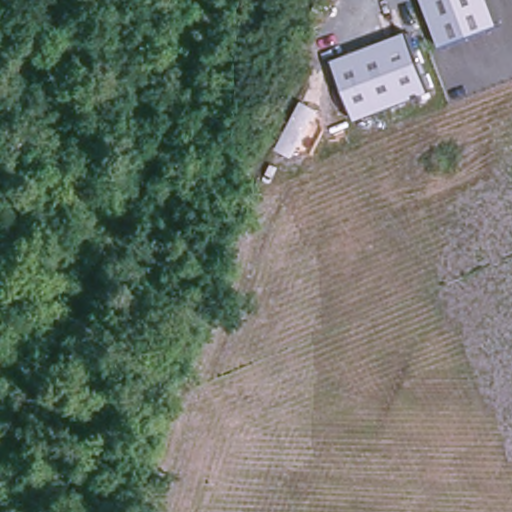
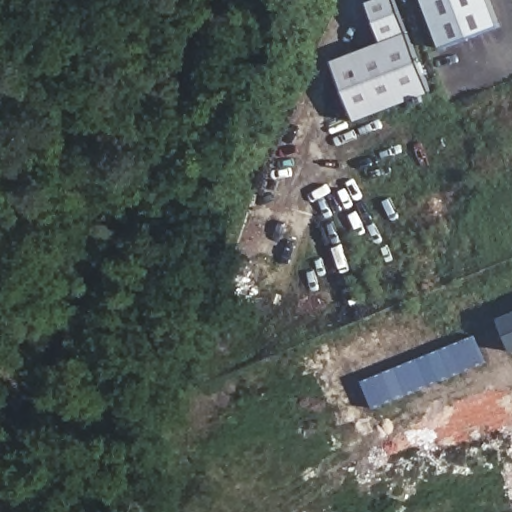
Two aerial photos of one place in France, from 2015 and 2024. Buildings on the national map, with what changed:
unchanged [(441,50),(422,0),(487,0),(498,27),(441,50)]
unchanged [(357,121),(334,61),(408,32),(418,57),(423,55),(429,72),(424,75),(431,92),(357,121)]
unchanged [(296,160),(278,151),(304,100),(320,110),(296,160)]
new [(501,317),(512,313),(512,345),(501,317)]
new [(476,335),(487,362),(374,408),(363,381),(476,335)]

